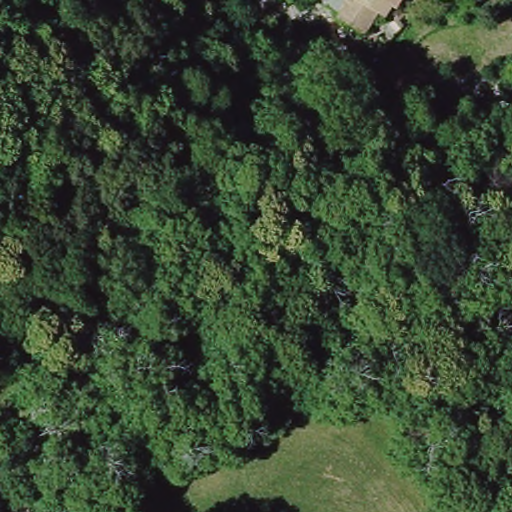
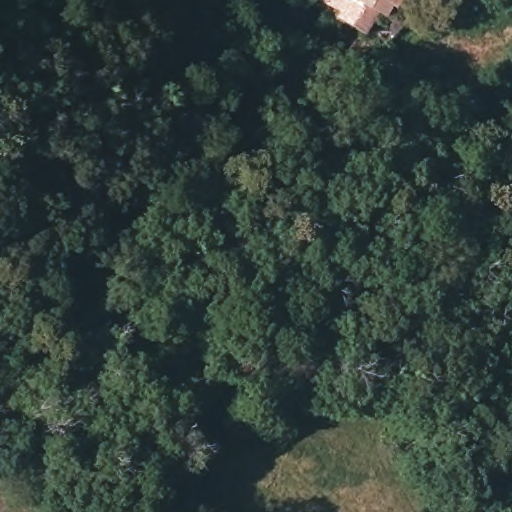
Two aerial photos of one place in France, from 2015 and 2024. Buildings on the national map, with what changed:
unchanged [(330,25),(348,0),(394,0),(368,39),(330,25)]

